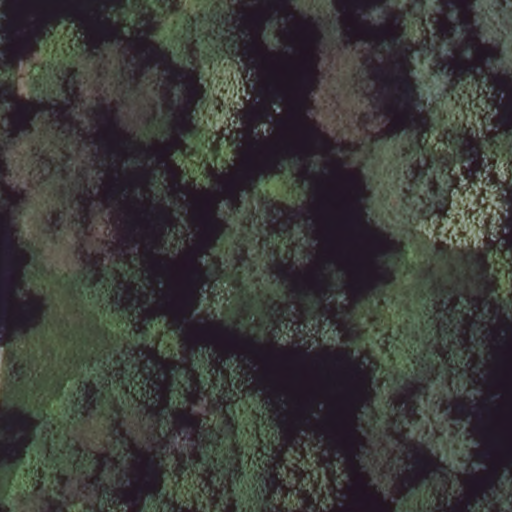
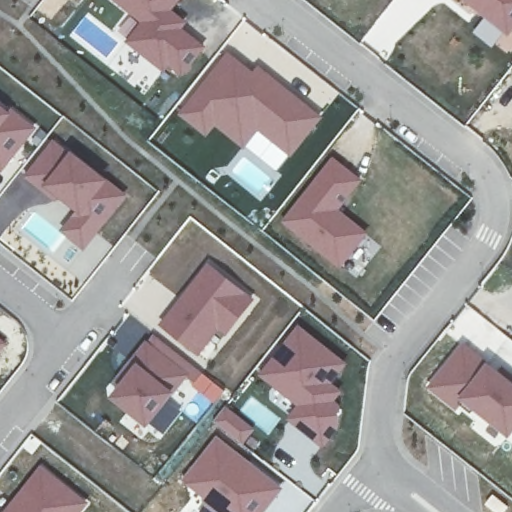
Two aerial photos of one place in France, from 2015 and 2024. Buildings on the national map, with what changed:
new [(171,10),(188,23),(184,29),(205,46),(181,78),(168,69),(164,74),(124,43),(140,23),(112,0),(179,0),(171,10)]
new [(508,36),(461,0),(512,0),(512,31),(508,36)]
new [(321,116),(290,157),(256,131),(243,149),(213,127),(205,137),(176,114),(228,51),(253,72),(259,66),(321,116)]
new [(11,108),(37,130),(2,174),(0,173),(0,105),(8,112),(11,108)]
new [(127,196),(83,252),(58,232),(73,214),(23,176),(53,140),(127,196)]
new [(333,156),(363,181),(339,210),(369,234),(339,269),(281,222),(333,156)]
new [(255,298),(225,335),(218,330),(198,355),(159,325),(207,262),(255,298)]
new [(345,363),(331,384),(343,392),(336,402),(341,406),(339,431),(323,448),(286,421),(296,405),(257,376),(298,324),(345,363)]
new [(0,352),(0,338),(6,343),(0,352)]
new [(188,375),(145,427),(108,398),(119,383),(113,379),(146,339),(188,375)]
new [(512,381),(512,434),(509,438),(465,405),(458,413),(426,388),(462,342),(512,381)]
new [(254,429),(242,444),(214,421),(226,407),(254,429)]
new [(280,490),(262,512),(218,512),(206,502),(206,497),(186,481),(218,440),(280,490)]
new [(81,512),(3,512),(40,465),(88,503),(81,512)]

